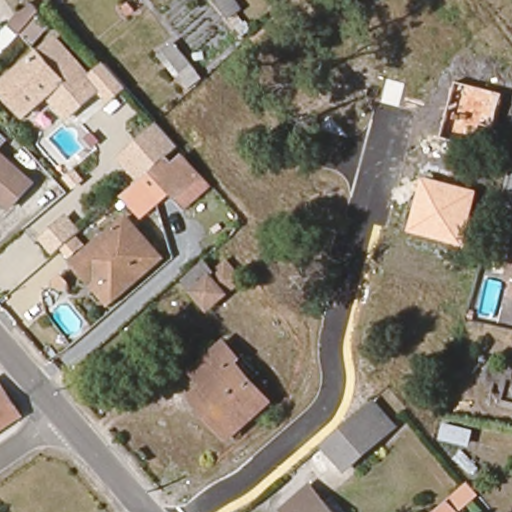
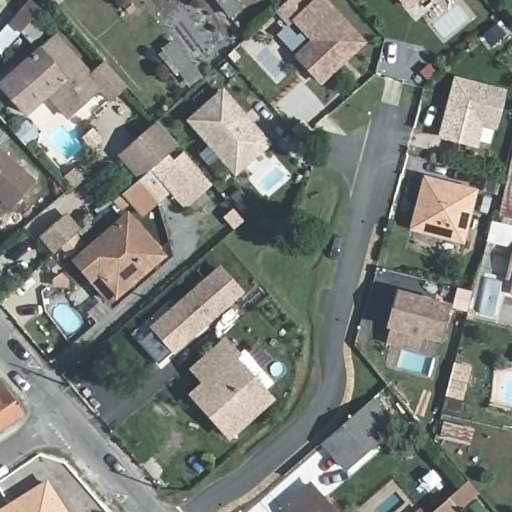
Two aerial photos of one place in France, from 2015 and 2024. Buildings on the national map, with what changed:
unchanged [(242,33),(228,16),(215,0),(234,0),(239,7),(235,10),(249,27),(242,33)]
new [(310,41),(291,20),(313,0),(327,0),(367,43),(321,86),(294,56),(310,41)]
new [(406,11),(398,0),(420,0),(406,11)]
unchanged [(0,33),(29,1),(40,12),(1,55),(0,53),(0,33)]
unchanged [(99,89),(67,118),(47,95),(24,115),(0,87),(0,85),(55,37),(90,77),(105,64),(125,87),(109,100),(99,89)]
unchanged [(177,47),(196,69),(181,82),(162,60),(177,47)]
unchanged [(489,147),(444,135),(460,80),(504,92),(489,147)]
new [(223,89),(272,146),(235,177),(187,121),(223,89)]
unchanged [(166,158),(158,164),(140,180),(120,157),(158,124),(178,147),(166,158)]
unchanged [(311,159),(332,144),(341,155),(321,170),(311,159)]
unchanged [(190,160),(198,170),(202,175),(174,198),(168,192),(141,215),(123,194),(140,180),(158,164),(166,158),(171,164),(184,154),(190,160)]
unchanged [(512,172),(512,183),(509,182),(512,172)]
unchanged [(466,245),(412,231),(425,176),(481,190),(466,245)]
unchanged [(277,225),(305,204),(313,216),(286,236),(277,225)]
unchanged [(66,214),(80,230),(52,257),(39,239),(66,214)]
unchanged [(90,282),(74,263),(128,219),(161,256),(116,296),(107,303),(90,282)]
demolished [(204,263),(212,274),(226,263),(240,279),(207,308),(183,281),(204,263)]
new [(174,356),(150,327),(222,265),(245,293),(174,356)]
new [(386,345),(387,329),(396,290),(451,304),(441,343),(422,338),(422,354),(386,345)]
unchanged [(208,393),(210,391),(198,377),(230,349),(242,363),(249,357),(276,387),(265,396),(272,404),(232,441),(207,415),(196,403),(208,393)]
unchanged [(0,423),(0,385),(17,411),(0,423)]
unchanged [(375,404),(394,426),(344,470),(324,447),(375,404)]
unchanged [(440,437),(443,424),(471,431),(467,444),(440,437)]
unchanged [(455,456),(464,448),(480,465),(471,473),(455,456)]
new [(69,512),(0,512),(0,510),(48,480),(69,512)]
unchanged [(476,492),(456,509),(458,512),(432,512),(467,482),(476,492)]
unchanged [(309,486),(332,512),(285,512),(282,509),(309,486)]

